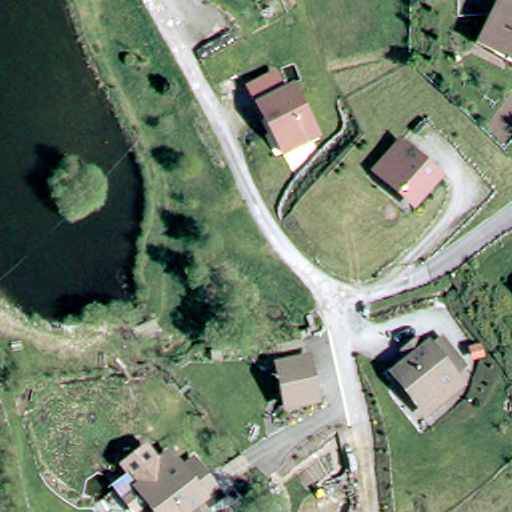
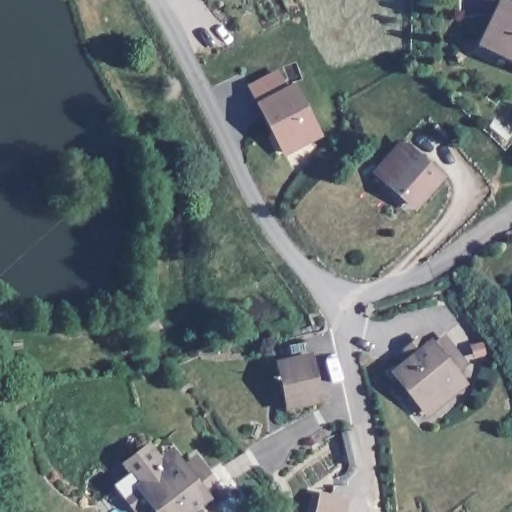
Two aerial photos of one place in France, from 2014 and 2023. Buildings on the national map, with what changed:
unchanged [(502,4),(512,9),(512,59),(482,45),(502,4)]
unchanged [(294,90),(321,137),(285,157),(259,108),(294,90)]
unchanged [(402,137),(444,177),(413,210),(371,172),(402,137)]
unchanged [(451,397),(431,413),(398,373),(413,361),(408,355),(422,343),(427,350),(431,347),(441,338),(462,362),(467,369),(456,377),(458,379),(464,387),(451,397)]
unchanged [(276,360),(315,352),(326,402),(288,407),(276,360)]
unchanged [(131,478),(159,457),(163,461),(174,453),(185,464),(198,456),(226,495),(211,507),(213,512),(154,512),(150,507),(143,512),(135,512),(123,495),(136,486),(131,478)]
new [(350,498),(347,512),(314,512),(319,492),(350,498)]
new [(226,495),(228,497),(216,507),(219,512),(213,512),(211,507),(226,495)]

